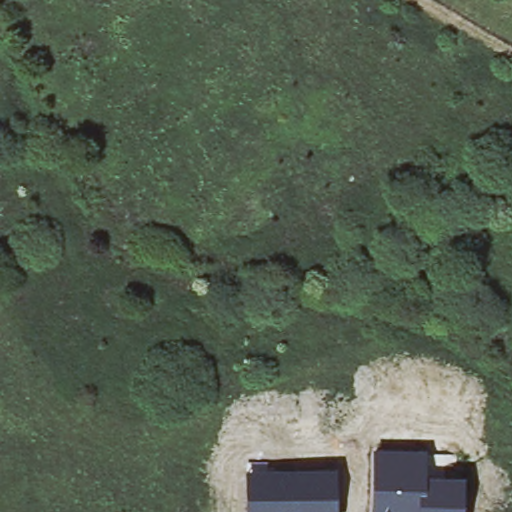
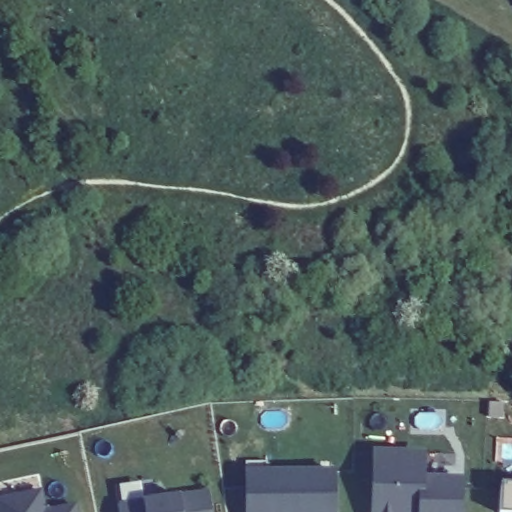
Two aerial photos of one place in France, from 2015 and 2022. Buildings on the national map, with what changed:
unchanged [(427,476),(462,477),(461,512),(371,512),(373,448),(425,449),(427,476)]
new [(510,512),(502,511),(503,484),(505,463),(512,464),(512,512),(510,512)]
unchanged [(336,512),(245,512),(245,470),(336,468),(336,512)]
new [(80,512),(0,512),(0,498),(42,489),(46,510),(78,503),(80,512)]
new [(119,512),(118,504),(143,500),(180,494),(209,489),(212,512),(119,512)]

